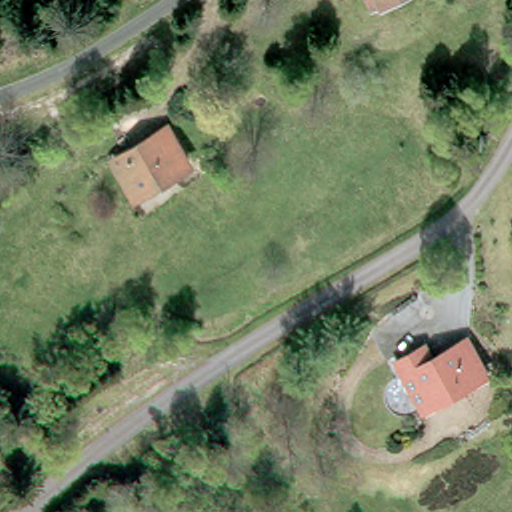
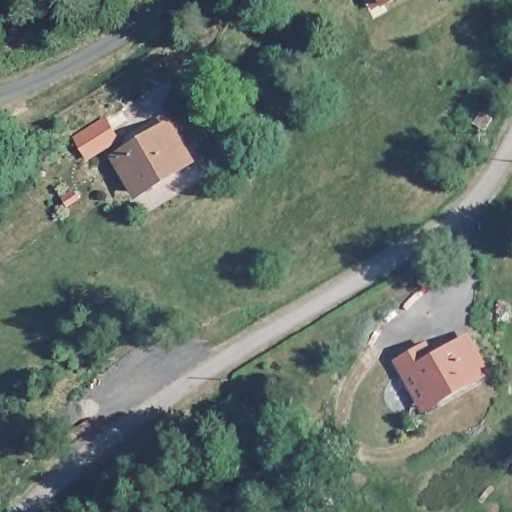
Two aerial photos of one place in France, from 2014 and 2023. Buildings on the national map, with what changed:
unchanged [(382,6),(371,13),(364,0),(394,0),(382,6)]
unchanged [(496,115),(490,126),(477,119),(483,108),(496,115)]
new [(106,115),(122,139),(87,160),(73,135),(106,115)]
unchanged [(114,160),(164,133),(184,170),(134,197),(114,160)]
unchanged [(413,355),(432,345),(440,360),(473,344),(491,380),(429,414),(400,363),(413,355)]

